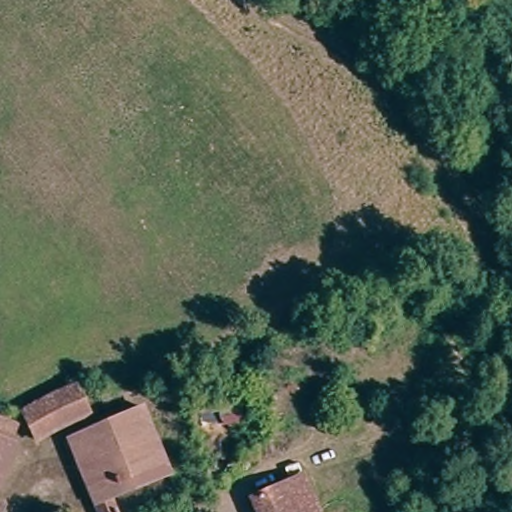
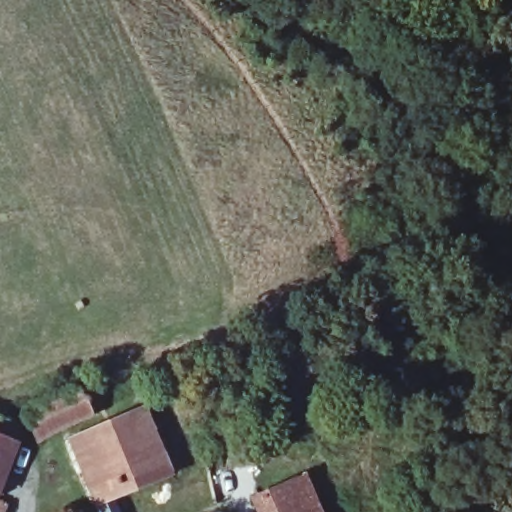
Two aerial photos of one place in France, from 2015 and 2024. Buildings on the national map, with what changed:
unchanged [(90,413),(36,441),(17,408),(74,380),(90,413)]
unchanged [(112,493),(119,512),(100,512),(70,432),(94,422),(144,400),(151,421),(162,414),(167,428),(157,434),(171,468),(112,493)]
unchanged [(0,478),(0,417),(15,422),(7,441),(13,443),(0,478)]
unchanged [(302,470),(321,512),(251,512),(245,497),(302,470)]
unchanged [(1,512),(0,512),(0,508),(2,509),(1,512)]

